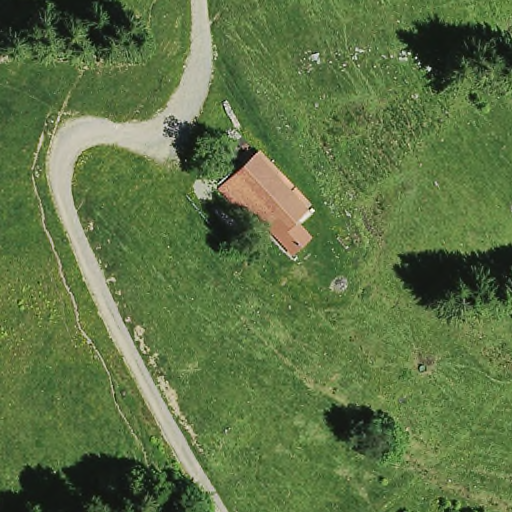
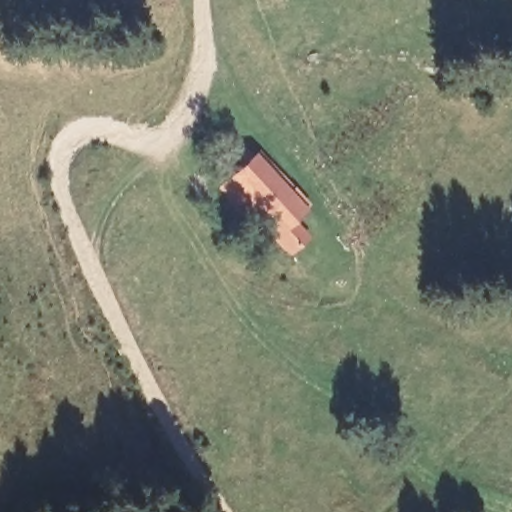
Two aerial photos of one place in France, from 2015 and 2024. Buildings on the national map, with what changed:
unchanged [(292,221),(307,236),(288,255),(222,189),(259,150),(309,201),(292,221)]

